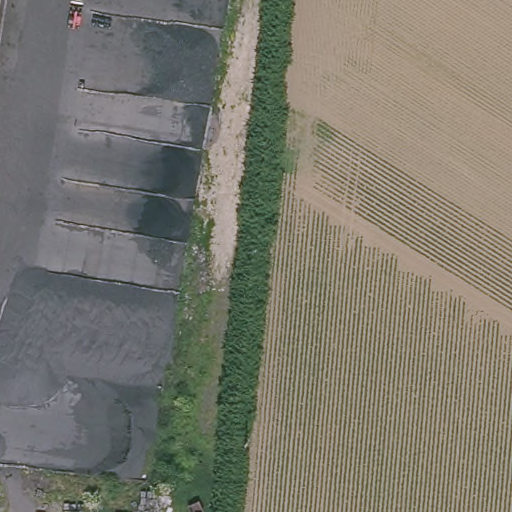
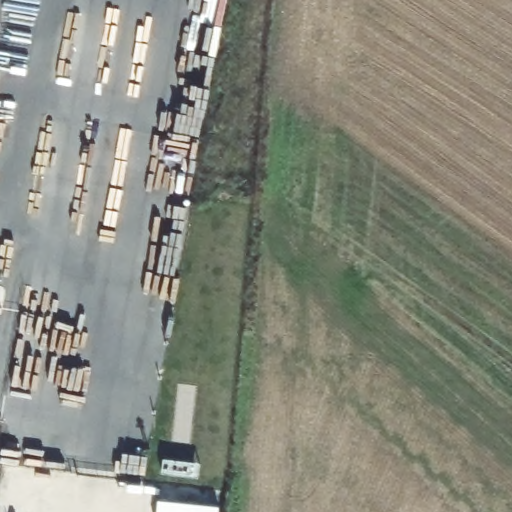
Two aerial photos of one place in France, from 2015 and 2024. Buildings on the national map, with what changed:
new [(159,501),(220,507),(219,512),(158,512),(159,501)]

